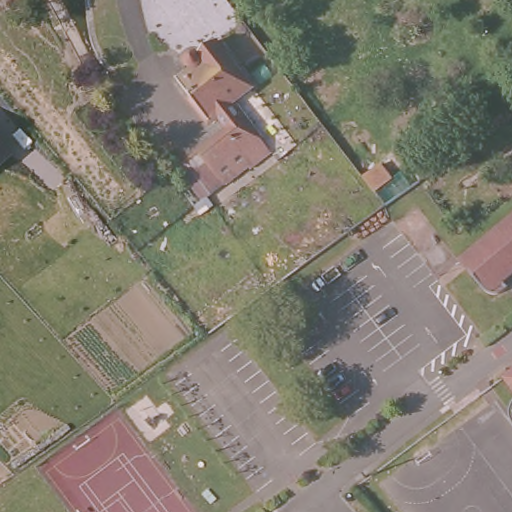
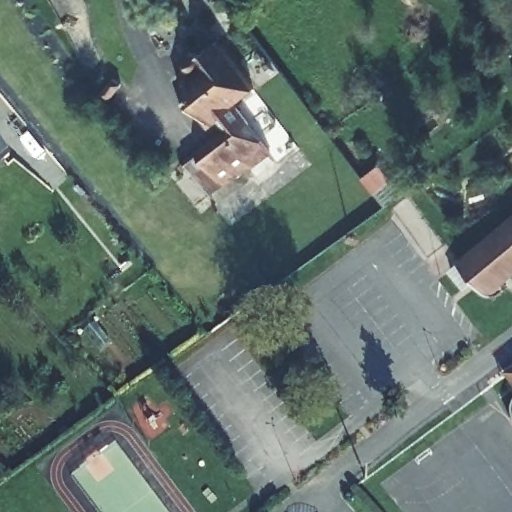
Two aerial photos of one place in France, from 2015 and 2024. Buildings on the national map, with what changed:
unchanged [(217,136),(175,81),(189,71),(184,69),(180,65),(180,59),(183,55),(188,52),(192,54),(195,56),(216,42),(252,89),(232,104),(263,145),(202,190),(182,163),(198,151),(217,136)]
unchanged [(0,167),(0,150),(8,160),(0,167)]
unchanged [(360,176),(375,166),(387,181),(372,192),(360,176)]
unchanged [(505,279),(508,285),(505,288),(490,287),(477,271),(475,274),(462,258),(512,219),(512,274),(505,279)]
unchanged [(505,391),(500,385),(509,377),(512,375),(512,400),(505,391)]
unchanged [(510,433),(507,427),(507,424),(507,421),(512,409),(512,435),(510,433)]

